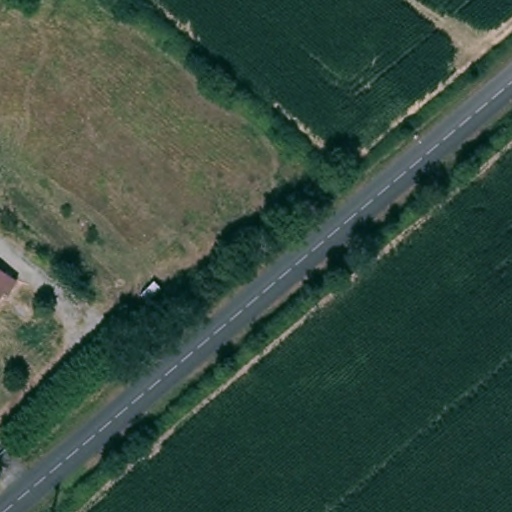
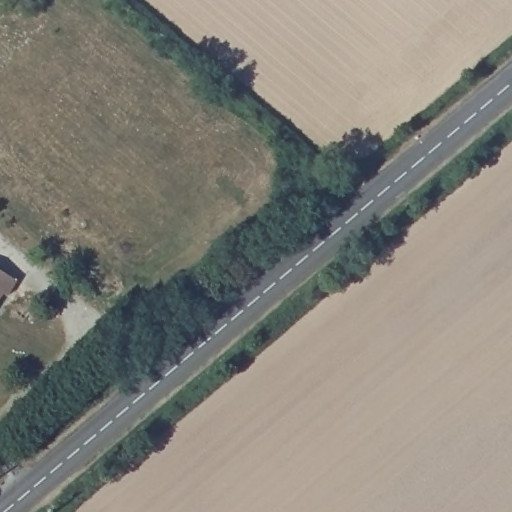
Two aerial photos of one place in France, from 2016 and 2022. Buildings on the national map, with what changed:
unchanged [(5,300),(0,297),(0,273),(16,282),(5,300)]

